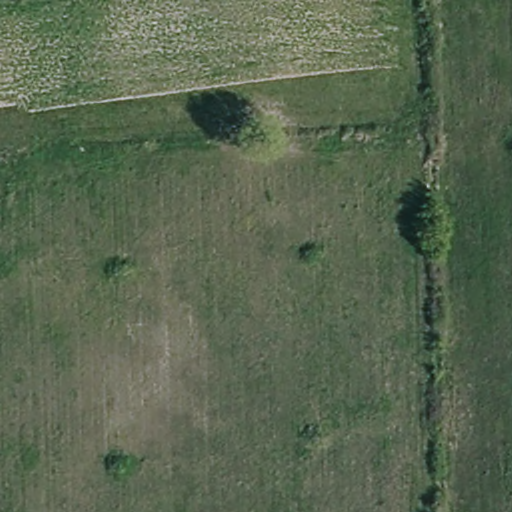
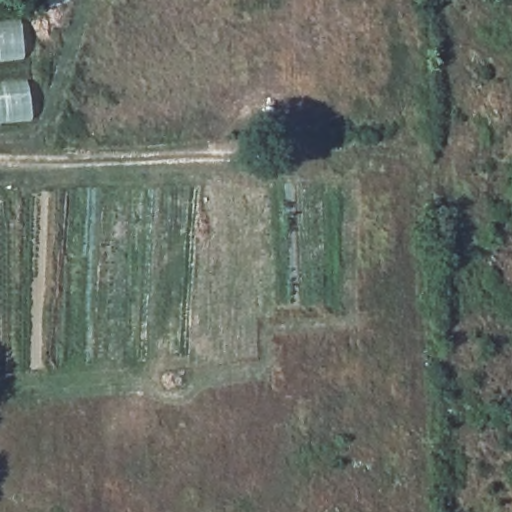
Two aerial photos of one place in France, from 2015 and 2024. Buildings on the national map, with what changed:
new [(20,19),(24,58),(0,61),(0,22),(20,19)]
new [(32,119),(0,123),(0,85),(27,81),(32,119)]

